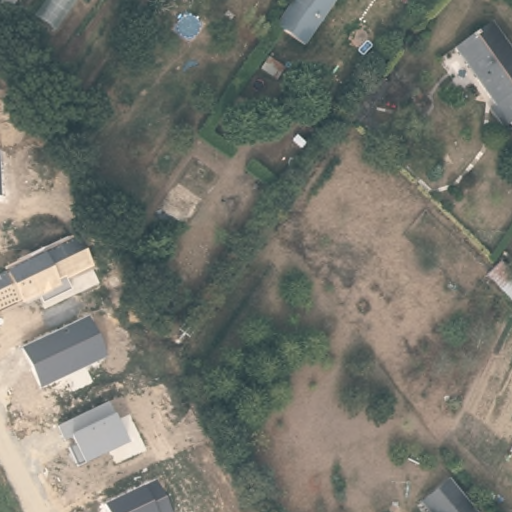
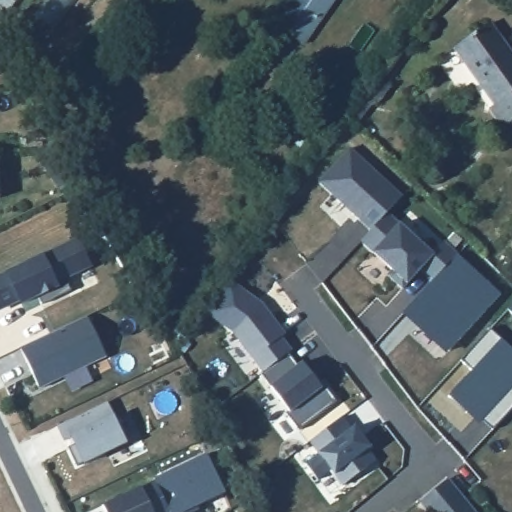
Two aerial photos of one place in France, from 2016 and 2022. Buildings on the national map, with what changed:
unchanged [(303,47),(275,25),(293,0),(334,0),(303,47)]
unchanged [(512,62),(512,126),(503,132),(485,111),(492,105),(452,49),(486,26),(512,62)]
new [(350,149),(402,197),(387,213),(371,231),(320,183),(350,149)]
new [(371,231),(387,213),(433,255),(445,242),(458,254),(457,255),(435,280),(422,269),(403,289),(388,275),(392,271),(361,242),(371,231)]
unchanged [(71,291),(43,303),(39,297),(24,305),(22,303),(0,312),(0,274),(79,237),(92,268),(67,280),(71,291)]
new [(435,280),(457,255),(501,295),(450,351),(420,324),(406,311),(418,298),(435,280)]
new [(230,280),(262,304),(286,334),(282,337),(292,351),(289,353),(264,372),(233,332),(206,313),(230,280)]
unchanged [(41,388),(23,347),(87,315),(106,356),(41,388)]
new [(493,431),(482,420),(470,410),(467,413),(449,397),(472,371),(461,361),(490,329),(512,348),(512,410),(493,431)]
new [(264,372),(289,353),(299,366),(303,363),(318,383),(321,380),(337,401),(299,431),(286,414),(290,412),(261,374),(264,372)]
unchanged [(109,401),(127,443),(77,466),(68,447),(76,444),(74,438),(65,441),(56,426),(109,401)]
new [(320,454),(310,442),(343,417),(360,439),(363,436),(371,448),(368,450),(376,461),(343,486),(331,470),(318,480),(306,464),(320,454)]
unchanged [(190,510),(191,512),(109,512),(105,504),(207,453),(226,493),(190,510)]
unchanged [(447,476),(479,512),(431,512),(420,499),(447,476)]

